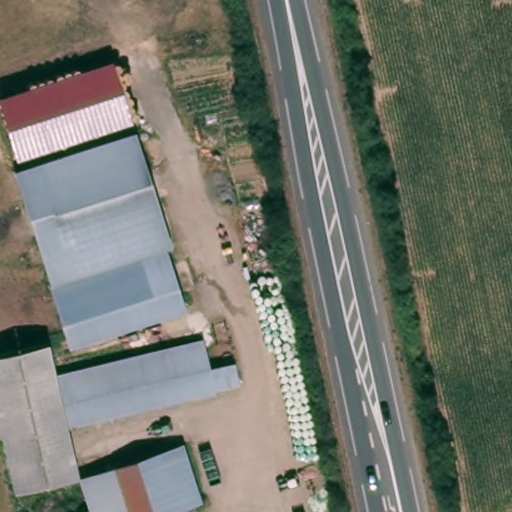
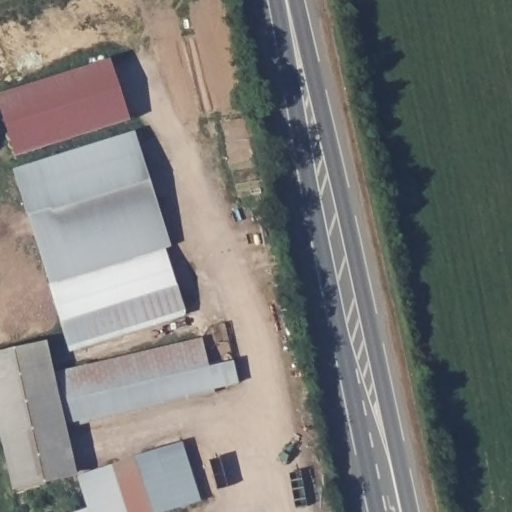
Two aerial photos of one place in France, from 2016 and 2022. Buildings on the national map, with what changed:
unchanged [(0,111),(0,96),(112,60),(132,122),(15,159),(0,111)]
unchanged [(146,127),(184,242),(175,247),(194,305),(79,342),(23,166),(146,127)]
unchanged [(205,387),(194,338),(204,336),(210,367),(236,363),(240,385),(205,391),(205,387)]
unchanged [(205,391),(62,424),(53,371),(194,338),(205,387),(205,391)]
unchanged [(62,424),(72,480),(10,490),(0,444),(0,353),(46,342),(53,371),(62,424)]
unchanged [(196,512),(83,512),(72,480),(107,469),(175,446),(196,512)]

